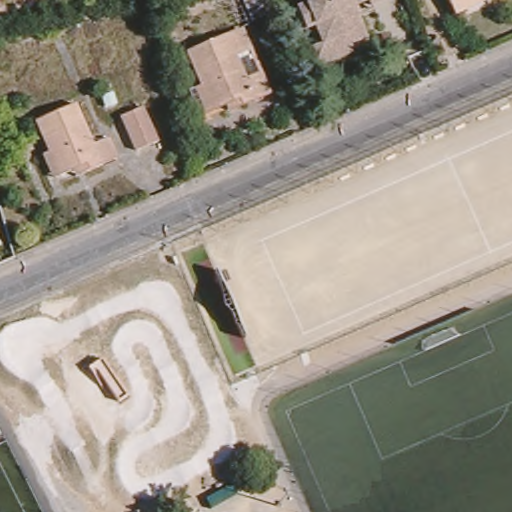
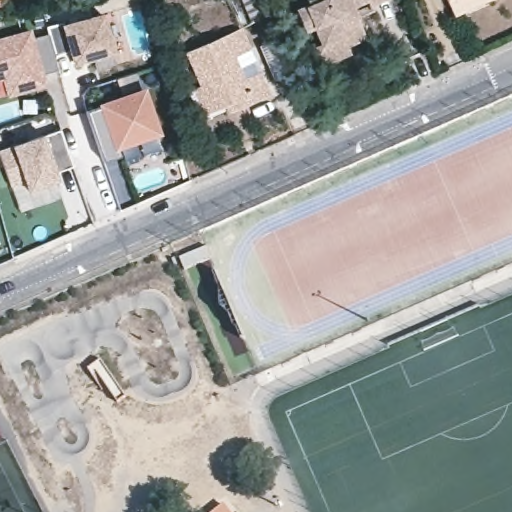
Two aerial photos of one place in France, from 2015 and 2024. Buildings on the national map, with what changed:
unchanged [(265,15),(249,22),(239,0),(259,0),(265,15)]
unchanged [(316,5),(304,10),(305,13),(298,15),(292,0),(313,0),(316,5)]
unchanged [(363,16),(372,39),(356,46),(352,47),(349,39),(331,46),(323,27),(313,32),(311,29),(305,13),(304,10),(316,5),(313,0),(394,0),(378,7),(379,9),(363,16)]
unchanged [(449,6),(446,0),(486,0),(453,15),(449,6)]
new [(117,53),(72,64),(70,53),(53,58),(46,33),(49,32),(47,28),(62,24),(104,14),(117,53)]
unchanged [(360,54),(321,70),(305,31),(311,29),(313,32),(323,27),(331,46),(349,39),(352,47),(356,46),(360,54)]
new [(0,77),(0,38),(27,30),(30,37),(46,33),(56,69),(40,73),(43,84),(11,93),(6,94),(1,76),(0,77)]
unchanged [(240,37),(248,55),(236,61),(245,82),(258,76),(267,97),(226,116),(223,109),(198,120),(188,96),(201,91),(188,60),(240,37)]
new [(146,88),(163,134),(157,136),(161,148),(125,160),(120,148),(114,150),(97,102),(146,88)]
demolished [(140,108),(155,142),(135,151),(120,116),(140,108)]
demolished [(40,125),(79,109),(96,150),(110,144),(119,164),(87,177),(85,171),(77,174),(63,180),(53,156),(40,125)]
new [(58,169),(62,180),(30,192),(27,182),(10,188),(0,154),(0,151),(14,146),(45,136),(61,130),(74,165),(58,169)]
new [(231,512),(216,512),(225,504),(231,512)]

